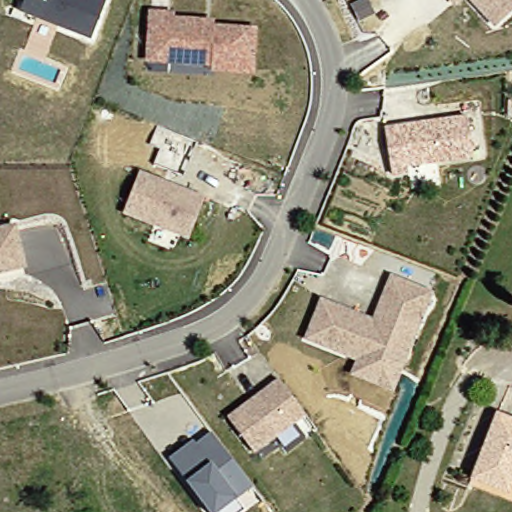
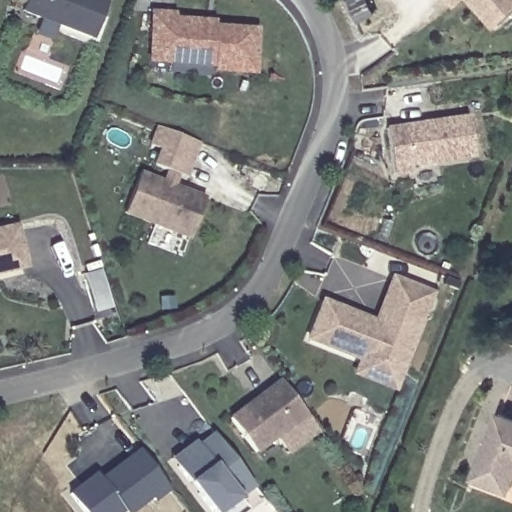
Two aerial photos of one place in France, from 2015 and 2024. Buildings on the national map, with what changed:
unchanged [(37,18),(21,12),(25,0),(106,0),(92,38),(59,26),(54,38),(33,30),(37,18)]
unchanged [(454,0),(460,0),(457,3),(454,0)]
unchanged [(475,0),(512,0),(512,9),(497,23),(475,0)]
unchanged [(150,47),(151,14),(173,16),(172,21),(199,22),(212,23),(212,28),(256,30),(254,74),(214,71),(214,67),(170,64),(149,63),(150,47)]
unchanged [(473,153),(407,164),(407,170),(392,173),(383,127),(466,113),(473,153)]
new [(155,129),(195,144),(182,179),(152,168),(157,152),(147,147),(155,129)]
unchanged [(122,216),(137,176),(162,185),(169,187),(203,200),(189,240),(122,216)]
unchanged [(24,264),(0,271),(0,229),(14,225),(24,264)]
unchanged [(357,373),(363,359),(311,339),(325,302),(362,316),(377,322),(394,277),(432,292),(402,374),(396,388),(357,373)]
unchanged [(283,382),(309,415),(259,454),(233,421),(283,382)]
unchanged [(507,489),(476,476),(500,412),(512,417),(512,477),(507,489)]
unchanged [(237,498),(245,511),(244,512),(210,512),(184,479),(171,458),(194,439),(197,443),(210,432),(252,488),(237,498)]
new [(94,473),(97,478),(139,448),(169,491),(152,504),(150,499),(133,512),(80,512),(66,494),(94,473)]

